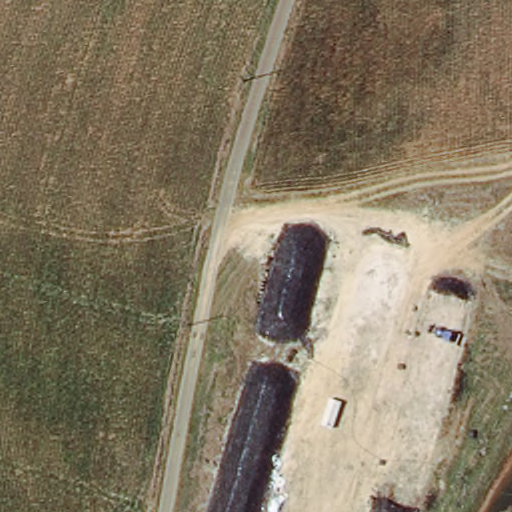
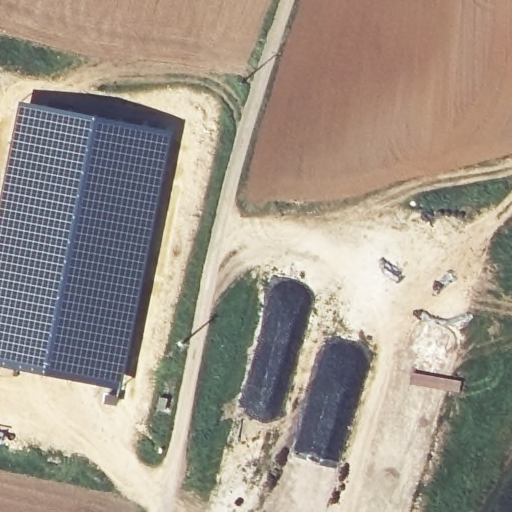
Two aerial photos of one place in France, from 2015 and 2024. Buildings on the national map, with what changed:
new [(172,130),(137,313),(117,400),(107,397),(108,390),(77,382),(0,368),(0,177),(17,100),(172,130)]

